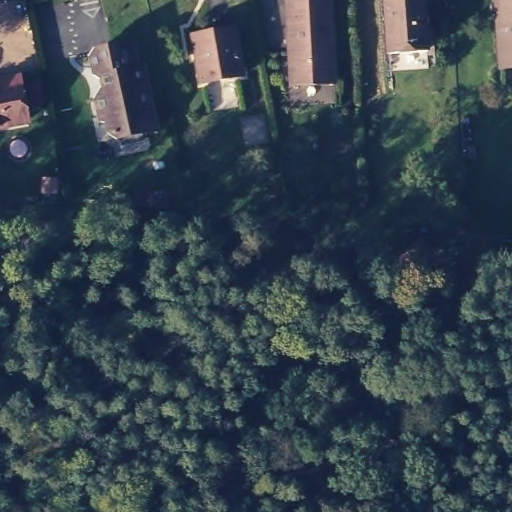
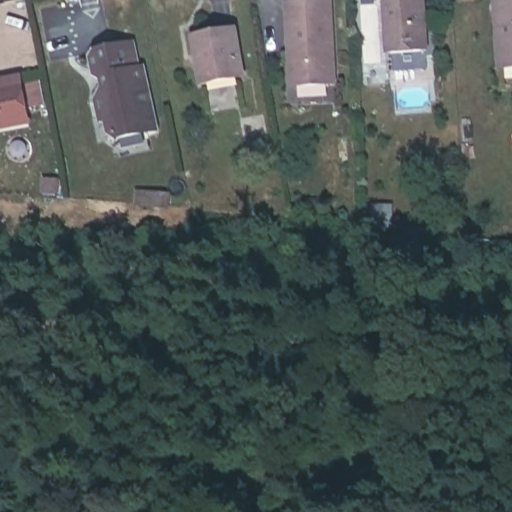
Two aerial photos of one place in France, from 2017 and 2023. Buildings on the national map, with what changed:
unchanged [(339,89),(295,90),(291,41),(289,40),(290,6),(295,6),(295,0),(326,0),(326,6),(333,6),(339,89)]
unchanged [(389,57),(386,0),(426,0),(429,56),(389,57)]
unchanged [(511,77),(500,2),(512,0),(512,77),(511,77)]
unchanged [(202,84),(191,36),(233,28),(241,72),(202,84)]
unchanged [(124,146),(114,141),(113,130),(106,130),(100,107),(111,94),(109,86),(98,80),(96,61),(134,53),(143,80),(148,80),(163,137),(124,146)]
unchanged [(0,90),(17,87),(25,133),(0,137),(0,90)]

